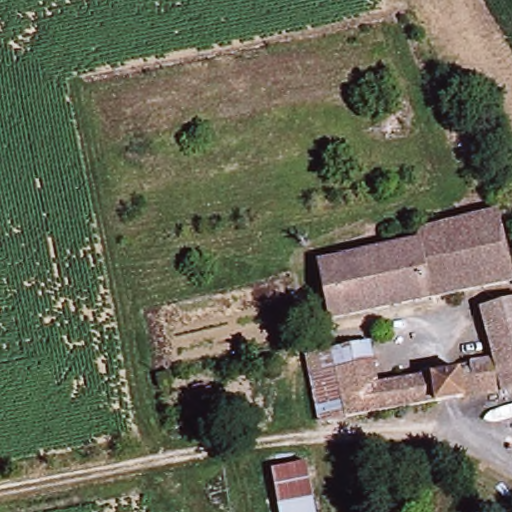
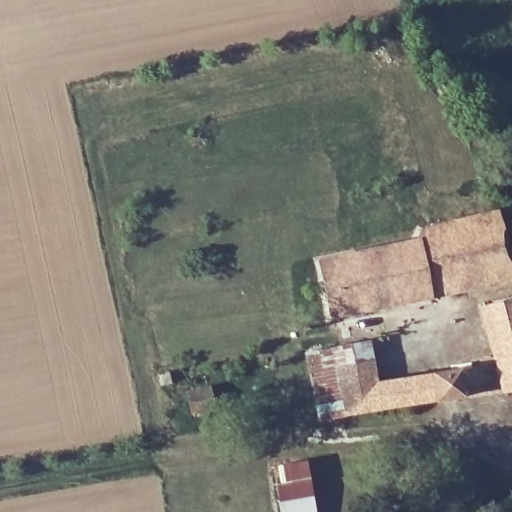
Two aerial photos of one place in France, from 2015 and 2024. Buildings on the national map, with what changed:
unchanged [(495,206),(512,269),(512,277),(332,323),(317,265),(407,244),(417,227),(495,206)]
unchanged [(308,362),(320,360),(373,349),(381,383),(475,362),(478,376),(500,371),(497,357),(484,360),(478,335),(490,332),(483,303),(512,295),(512,386),(331,422),(319,424),(308,362)]
unchanged [(173,424),(168,401),(191,395),(196,419),(173,424)]
unchanged [(267,468),(301,459),(313,512),(277,512),(267,468)]

